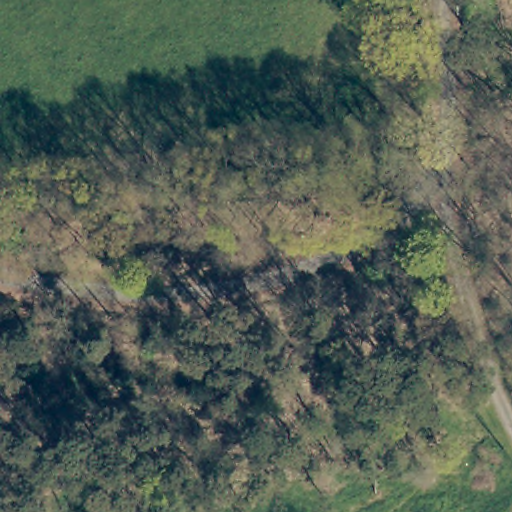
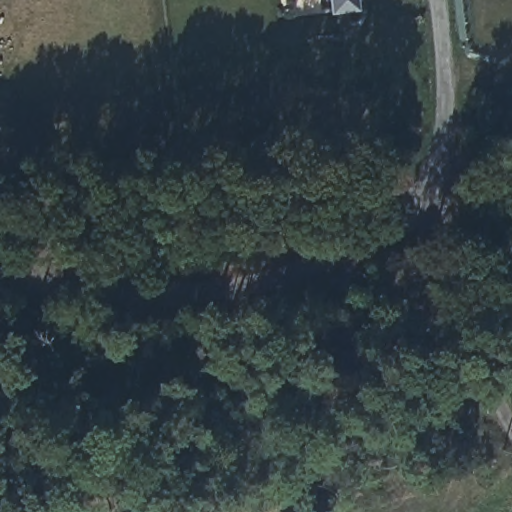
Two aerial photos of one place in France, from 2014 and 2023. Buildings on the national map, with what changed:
new [(331,14),(329,0),(358,0),(360,12),(331,14)]

